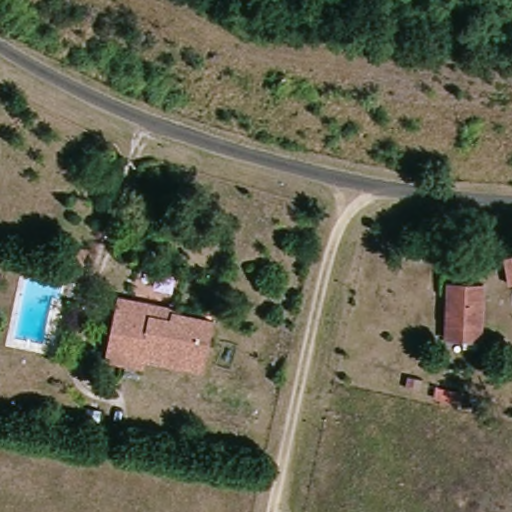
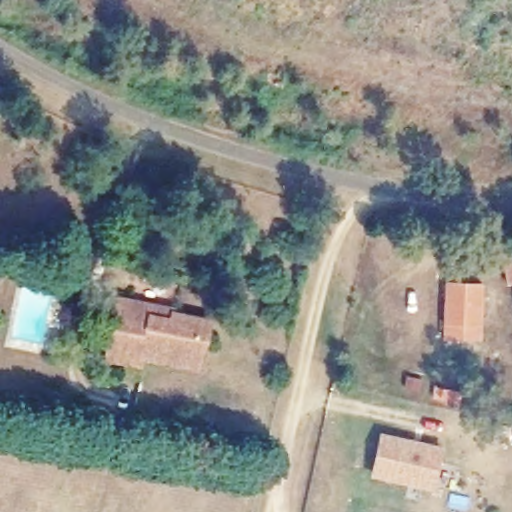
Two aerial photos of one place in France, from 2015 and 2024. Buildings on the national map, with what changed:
unchanged [(502,282),(498,255),(512,252),(512,280),(502,282)]
unchanged [(483,335),(448,335),(449,280),(484,280),(483,335)]
unchanged [(132,358),(107,354),(114,304),(138,308),(132,358)]
unchanged [(208,321),(201,361),(155,352),(153,361),(132,358),(138,308),(208,321)]
unchanged [(473,409),(438,401),(442,385),(476,393),(473,409)]
new [(380,433),(443,446),(434,490),(370,477),(380,433)]

